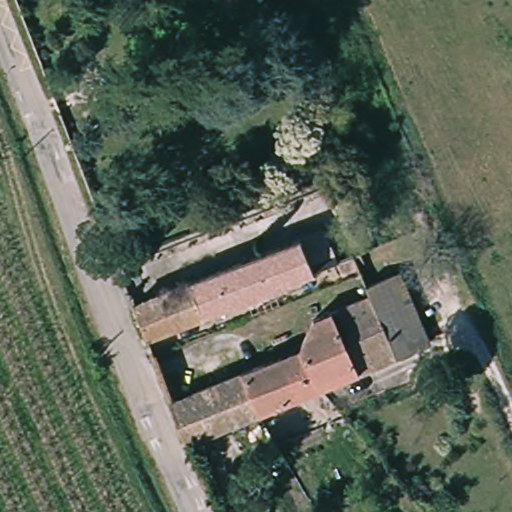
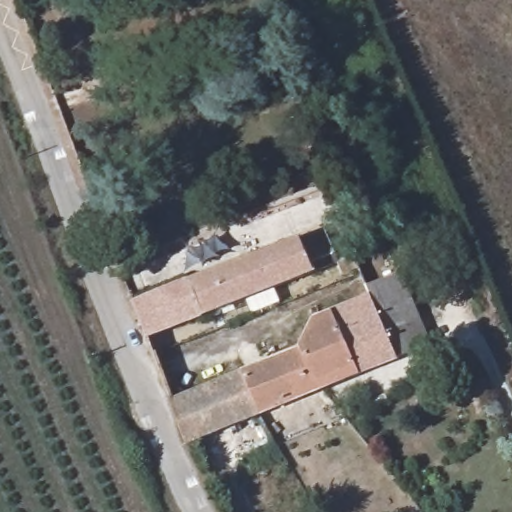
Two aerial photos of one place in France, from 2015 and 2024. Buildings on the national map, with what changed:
unchanged [(137,303),(304,237),(316,270),(170,329),(164,350),(156,355),(137,303)]
unchanged [(389,358),(365,296),(360,283),(394,271),(422,344),(389,358)]
unchanged [(345,304),(365,296),(389,358),(351,374),(327,311),(345,304)]
unchanged [(163,401),(288,350),(305,320),(327,311),(351,374),(313,389),(250,415),(179,445),(163,401)]

